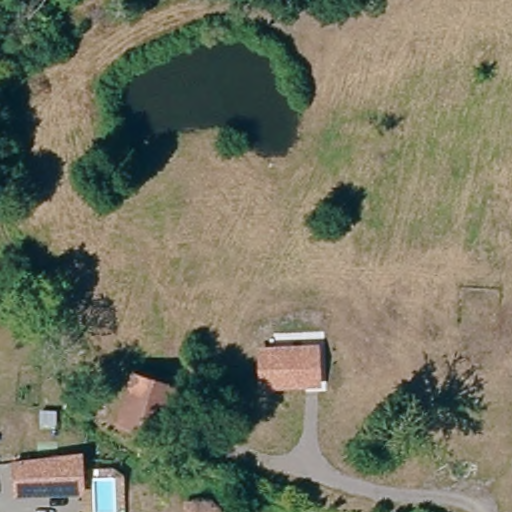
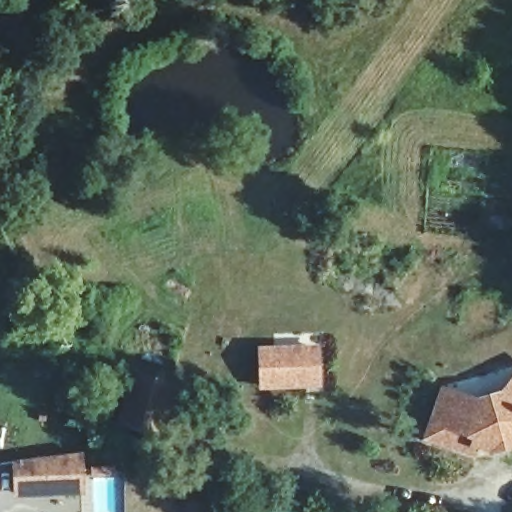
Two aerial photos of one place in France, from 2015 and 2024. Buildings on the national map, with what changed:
unchanged [(270,352),(320,348),(323,383),(267,389),(264,353),(270,352)]
unchanged [(160,434),(114,420),(130,369),(174,382),(160,434)]
new [(458,442),(433,433),(440,412),(449,387),(461,391),(482,398),(508,390),(512,385),(512,436),(500,440),(498,446),(480,440),(477,448),(458,442)]
demolished [(271,457),(263,481),(233,473),(240,449),(271,457)]
unchanged [(23,494),(19,461),(25,461),(85,454),(89,486),(23,494)]
unchanged [(8,498),(0,498),(0,464),(8,464),(8,498)]
unchanged [(220,512),(187,512),(190,499),(221,507),(220,512)]

